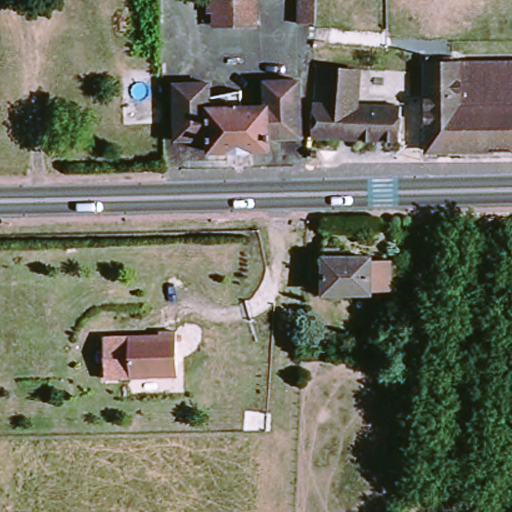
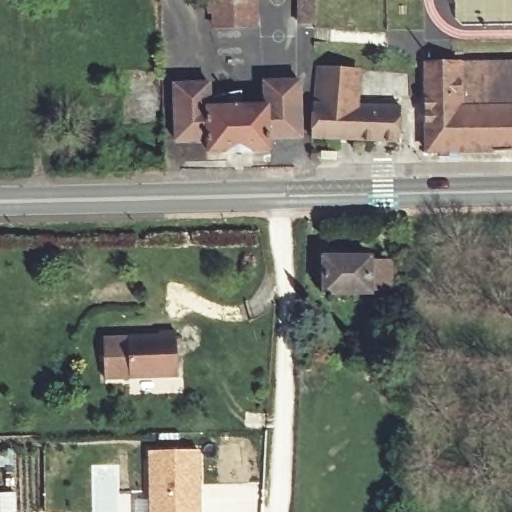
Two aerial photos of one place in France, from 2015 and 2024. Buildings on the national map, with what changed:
unchanged [(252,25),(214,25),(213,0),(252,0),(252,25)]
unchanged [(424,64),(512,63),(512,105),(425,109),(424,64)]
unchanged [(316,75),(350,75),(352,114),(397,111),(399,140),(317,142),(316,75)]
unchanged [(172,82),(202,83),(202,106),(263,106),(264,83),(299,83),(297,134),(273,134),(273,148),(208,147),(209,132),(172,131),(172,82)]
unchanged [(512,105),(512,151),(425,151),(425,109),(512,105)]
unchanged [(322,296),(322,260),(393,259),(394,294),(322,296)]
unchanged [(157,336),(157,332),(175,331),(177,375),(103,378),(102,338),(157,336)]
new [(200,451),(200,512),(151,512),(150,451),(200,451)]
new [(195,453),(196,512),(147,512),(147,454),(195,453)]

